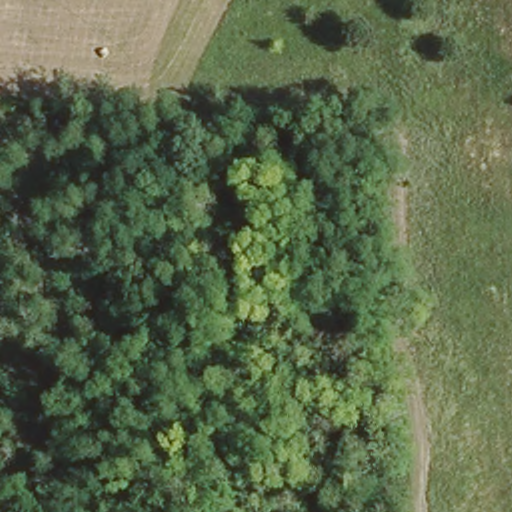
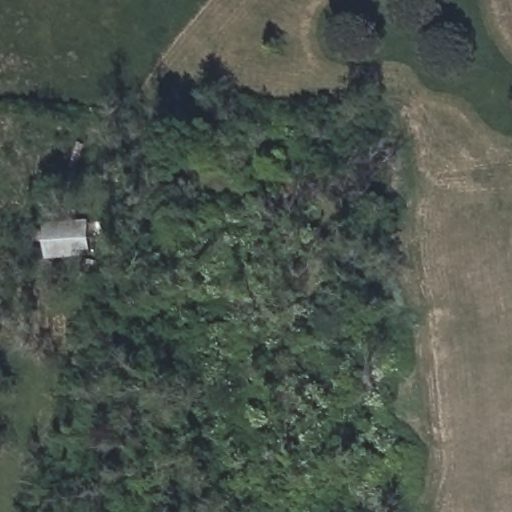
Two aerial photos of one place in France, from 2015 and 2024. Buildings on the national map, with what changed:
new [(49,259),(45,225),(89,221),(94,255),(49,259)]

